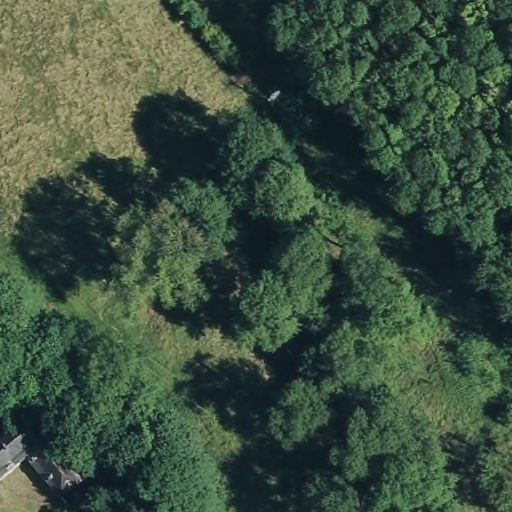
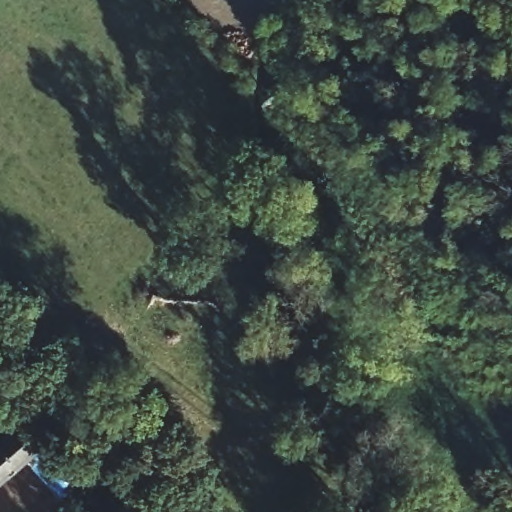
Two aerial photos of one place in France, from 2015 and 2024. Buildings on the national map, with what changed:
unchanged [(14,421),(18,418),(24,425),(30,432),(34,430),(42,438),(42,439),(73,476),(75,478),(55,496),(20,456),(0,474),(0,433),(7,427),(14,421)]
unchanged [(152,510),(132,482),(145,474),(145,475),(165,501),(173,512),(153,512),(152,510)]
unchanged [(100,511),(101,512),(99,512),(100,511)]

